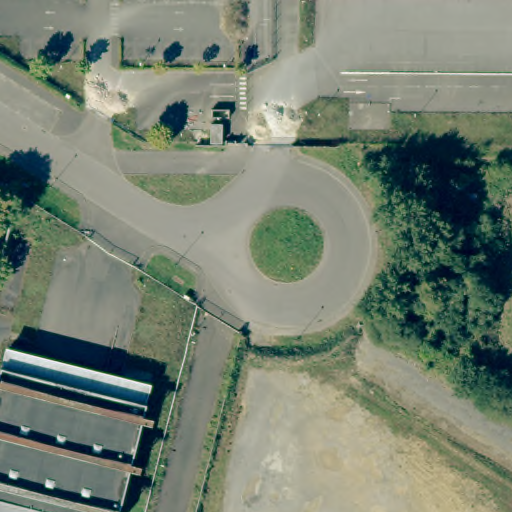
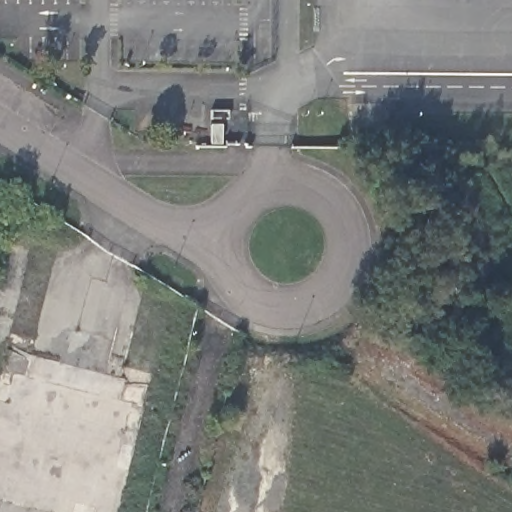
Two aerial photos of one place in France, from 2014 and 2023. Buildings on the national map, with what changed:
unchanged [(210,150),(212,130),(221,130),(220,150),(210,150)]
unchanged [(477,189),(477,232),(432,230),(434,187),(477,189)]
demolished [(0,376),(4,361),(147,399),(119,512),(74,512),(0,493),(0,376)]

